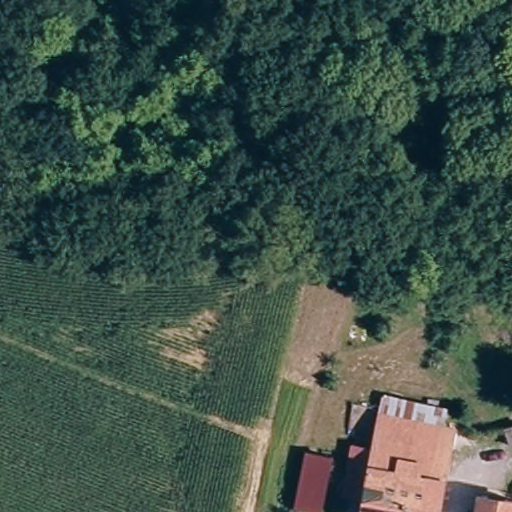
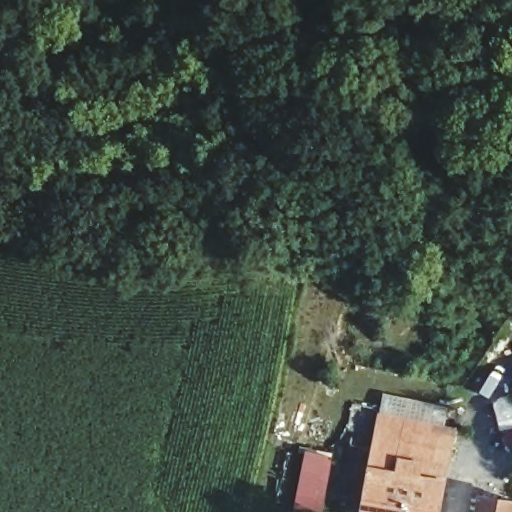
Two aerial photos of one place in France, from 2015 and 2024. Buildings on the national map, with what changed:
unchanged [(381,410),(441,420),(437,438),(377,428),(381,410)]
unchanged [(447,439),(443,458),(433,512),(359,512),(362,498),(341,495),(349,457),(369,460),(373,443),(377,428),(437,438),(447,439)]
unchanged [(323,504),(311,502),(297,500),(307,454),(324,457),(333,458),(323,504)]
unchanged [(483,512),(487,494),(512,498),(512,512),(483,512)]

